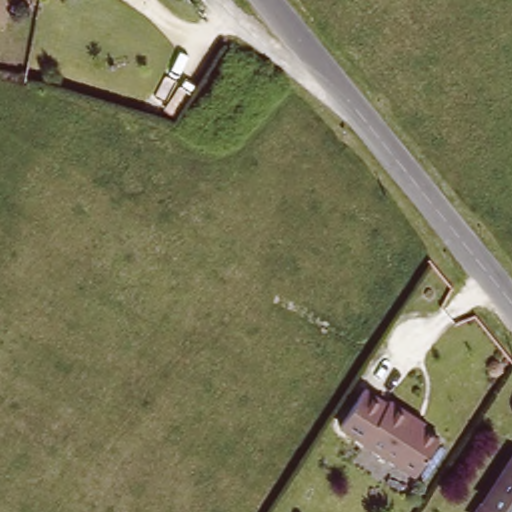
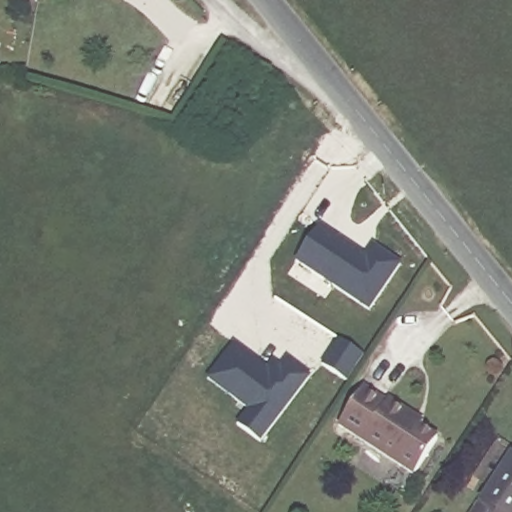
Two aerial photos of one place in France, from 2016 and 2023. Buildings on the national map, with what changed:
new [(297,262),(321,227),(365,256),(373,245),(401,264),(370,311),(297,262)]
new [(238,425),(249,409),(208,380),(235,344),(268,370),(273,361),(282,367),(287,360),(310,376),(260,442),(238,425)]
unchanged [(386,406),(388,402),(415,419),(427,427),(423,433),(444,445),(420,482),(363,445),(335,426),(360,390),(386,406)]
unchanged [(512,512),(480,512),(512,461),(512,512)]

